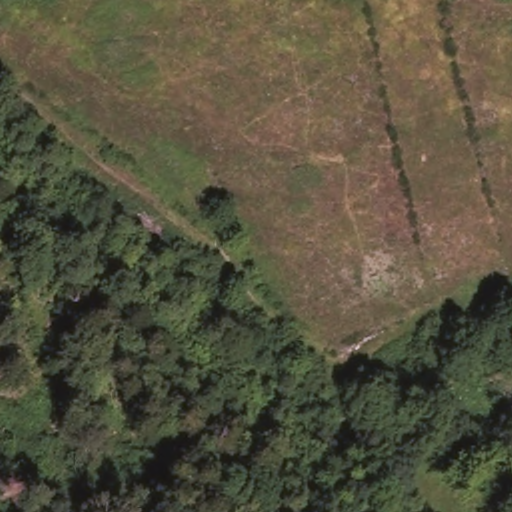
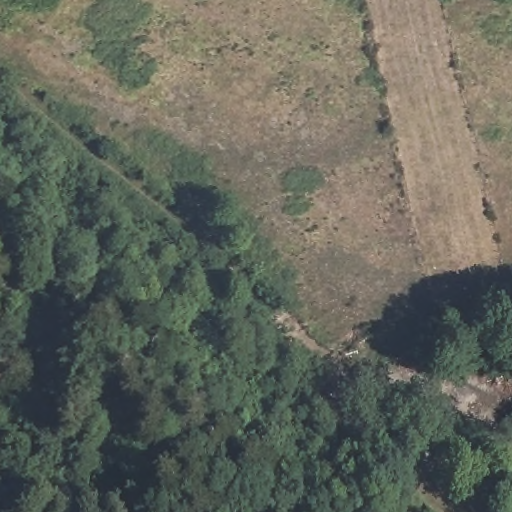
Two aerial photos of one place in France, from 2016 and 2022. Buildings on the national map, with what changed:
[]

